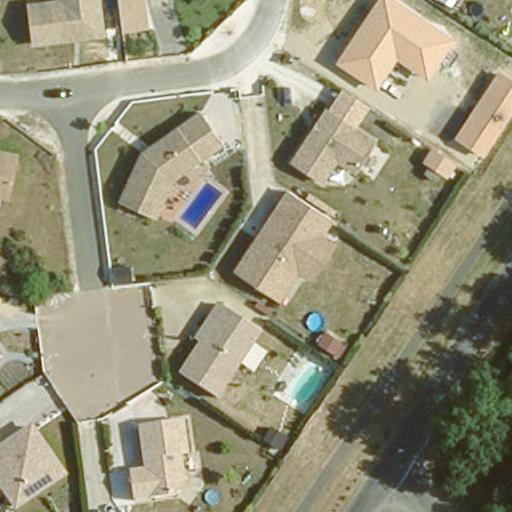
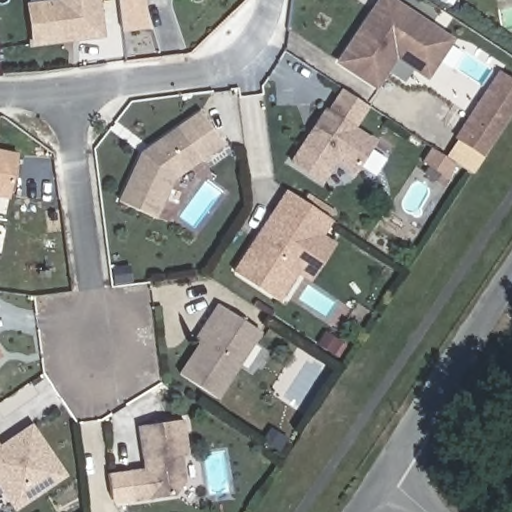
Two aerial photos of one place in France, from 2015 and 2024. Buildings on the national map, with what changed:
unchanged [(29,4),(56,0),(97,0),(102,31),(85,33),(69,36),(34,41),(29,4)]
unchanged [(124,33),(119,0),(146,0),(151,29),(124,33)]
unchanged [(397,56),(377,86),(339,61),(378,0),(390,0),(452,39),(429,77),(397,56)]
unchanged [(485,158),(457,139),(501,71),(512,78),(512,117),(485,158)]
unchanged [(375,143),(355,173),(337,161),(334,164),(323,182),(293,162),(305,143),(327,111),(375,143)]
unchanged [(141,153),(199,113),(222,144),(171,179),(154,217),(119,202),(141,153)]
unchanged [(423,162),(434,146),(459,163),(448,179),(423,162)]
unchanged [(18,160),(17,163),(8,202),(0,200),(0,156),(11,159),(18,160)]
unchanged [(310,277),(297,269),(278,300),(234,273),(264,227),(272,213),(286,191),(329,219),(319,235),(332,242),(310,277)]
unchanged [(254,342),(218,398),(181,374),(201,343),(196,340),(210,318),(215,312),(219,305),(260,332),(254,342)]
unchanged [(174,423),(188,422),(189,435),(192,455),(184,456),(188,483),(178,497),(137,502),(133,472),(148,470),(142,428),(174,423)]
unchanged [(33,430),(65,476),(19,509),(0,482),(0,449),(2,452),(33,430)]

